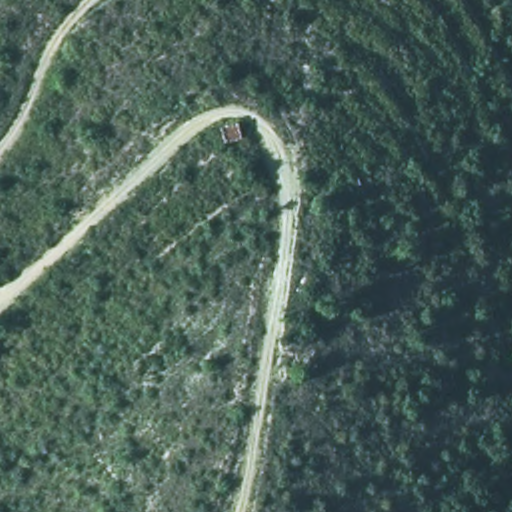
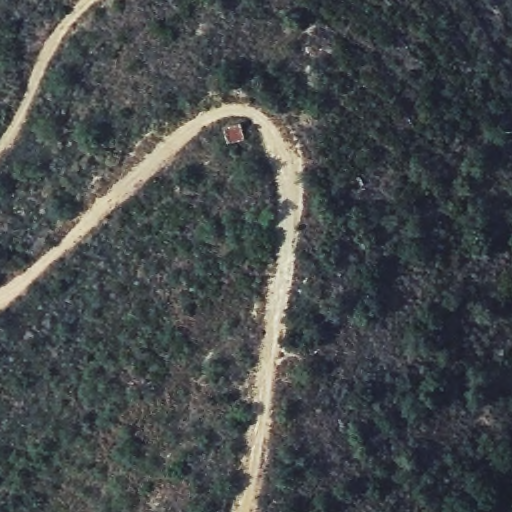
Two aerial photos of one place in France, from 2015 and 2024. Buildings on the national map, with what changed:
unchanged [(241,124),(243,139),(224,145),(221,126),(241,124)]

